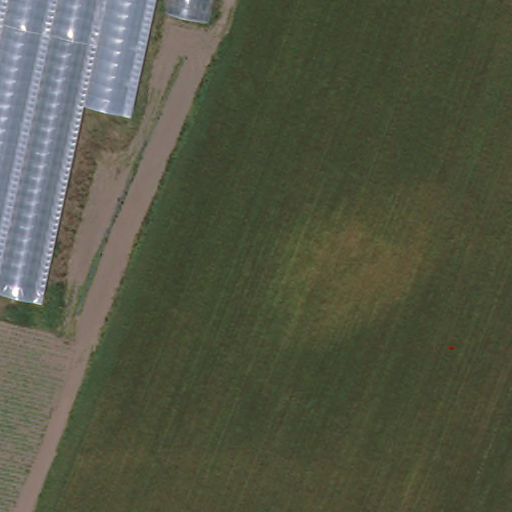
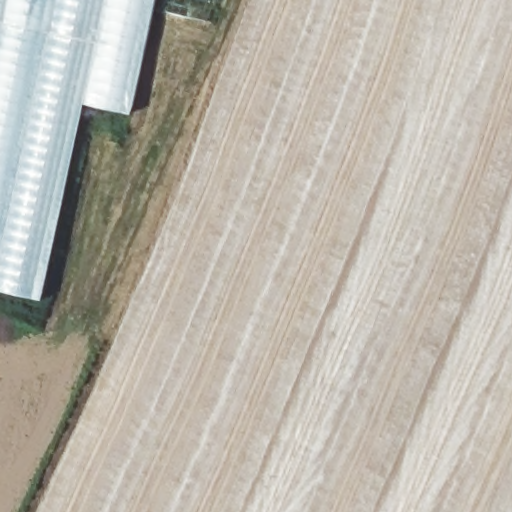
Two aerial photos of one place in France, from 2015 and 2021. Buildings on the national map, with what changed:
unchanged [(85,100),(43,290),(0,282),(0,0),(157,0),(133,112),(85,100)]
unchanged [(164,10),(167,0),(213,0),(208,19),(164,10)]

